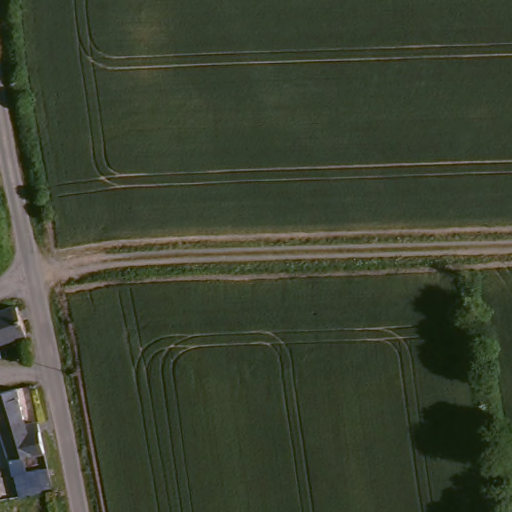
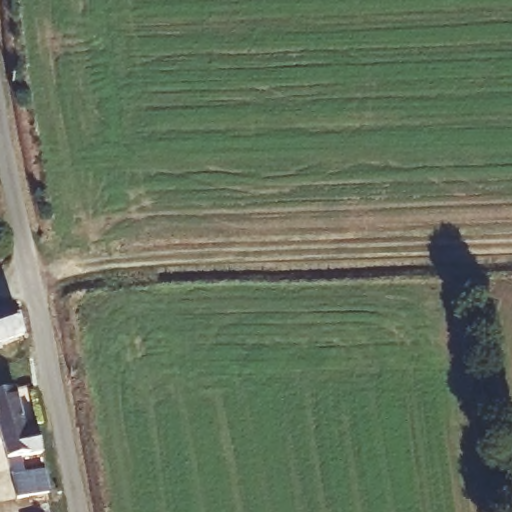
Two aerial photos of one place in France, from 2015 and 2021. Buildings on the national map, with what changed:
unchanged [(14,301),(24,331),(0,340),(0,307),(14,301)]
unchanged [(0,444),(0,388),(16,384),(25,424),(32,423),(37,450),(17,455),(19,470),(23,469),(42,466),(45,489),(9,495),(6,477),(0,444)]

